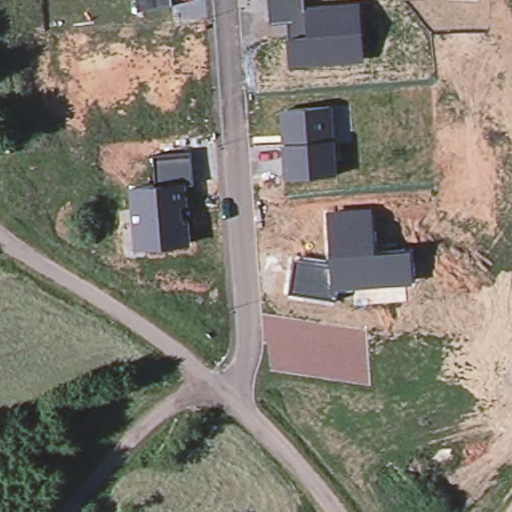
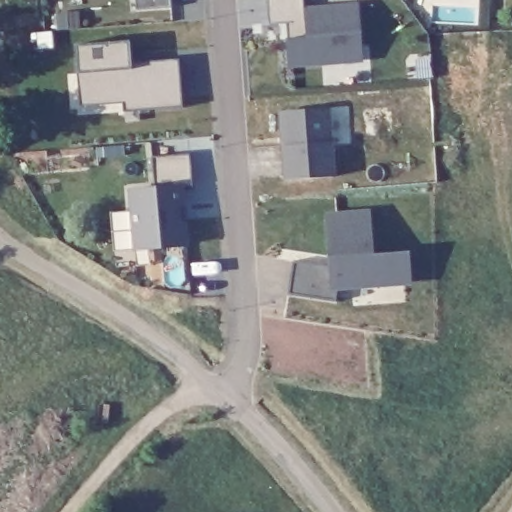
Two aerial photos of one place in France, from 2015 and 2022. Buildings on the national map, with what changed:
unchanged [(173,5),(135,12),(135,0),(173,0),(173,5)]
unchanged [(305,5),(361,0),(362,0),(367,61),(290,68),(286,21),(267,22),(266,0),(304,0),(305,5)]
new [(183,106),(122,110),(122,102),(79,105),(75,43),(129,40),(130,61),(179,58),(183,106)]
unchanged [(334,105),(340,176),(283,181),(278,109),(334,105)]
unchanged [(192,152),(194,185),(187,186),(192,244),(132,249),(129,186),(154,183),(152,153),(192,152)]
unchanged [(372,207),(376,252),(414,249),(415,283),(341,290),(337,301),(287,295),(295,255),(327,260),(325,210),(372,207)]

